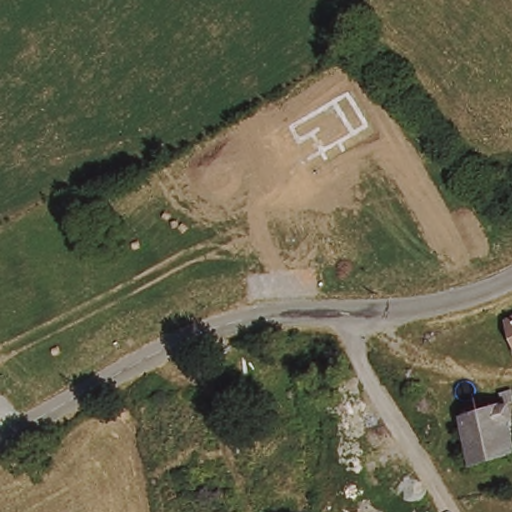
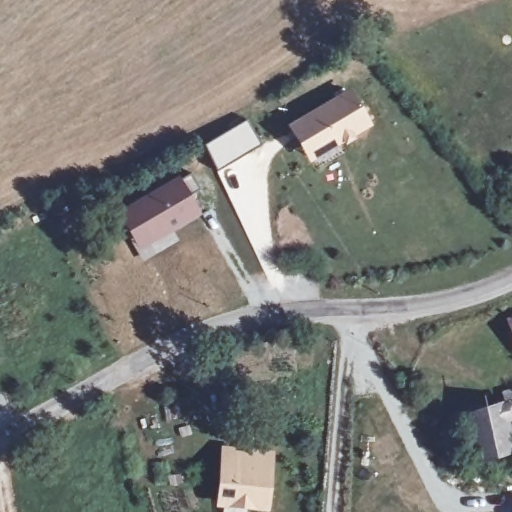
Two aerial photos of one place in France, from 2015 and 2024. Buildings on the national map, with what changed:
new [(287,125),(350,89),(372,126),(355,136),(355,140),(345,145),(344,143),(310,162),(287,125)]
new [(246,120),(260,144),(217,169),(204,144),(246,120)]
new [(180,175),(202,215),(175,231),(180,240),(142,261),(113,211),(180,175)]
unchanged [(512,438),(512,452),(472,465),(460,413),(503,400),(512,438)]
new [(217,495),(213,495),(215,459),(221,460),(220,446),(275,451),(270,511),(216,507),(217,495)]

